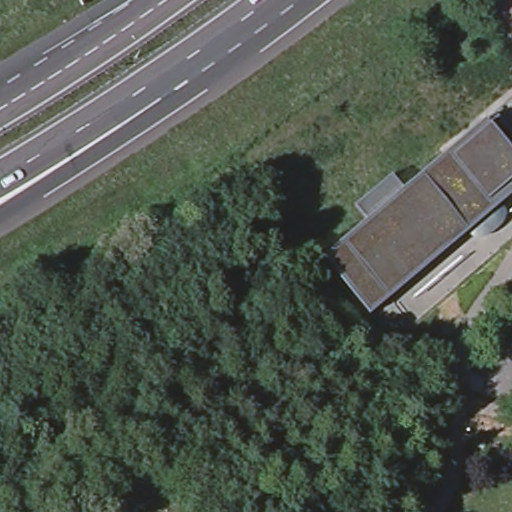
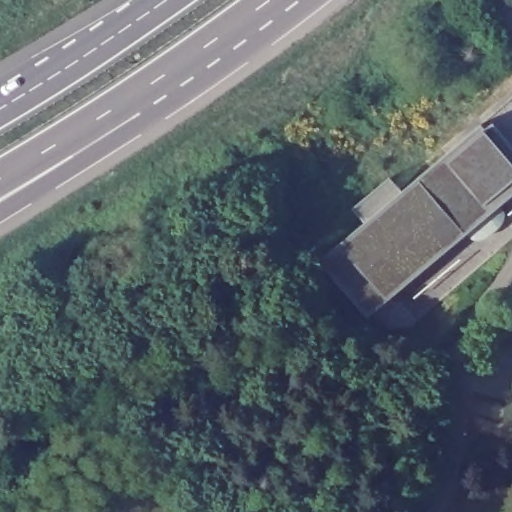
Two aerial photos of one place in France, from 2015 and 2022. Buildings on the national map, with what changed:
unchanged [(356,209),(393,177),(404,189),(484,122),(488,127),(497,121),(512,140),(512,200),(499,211),(506,218),(479,240),(468,232),(372,317),(323,258),(366,222),(356,209)]

